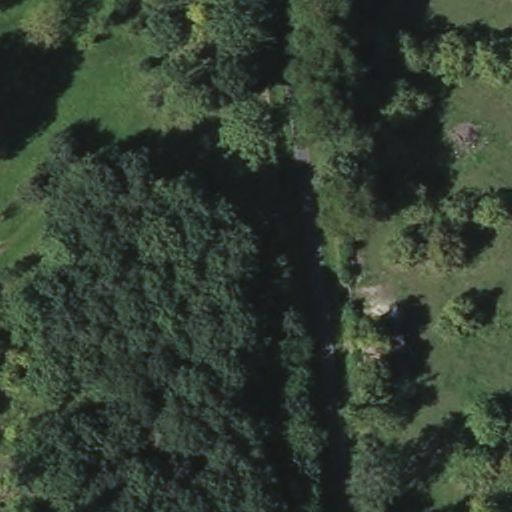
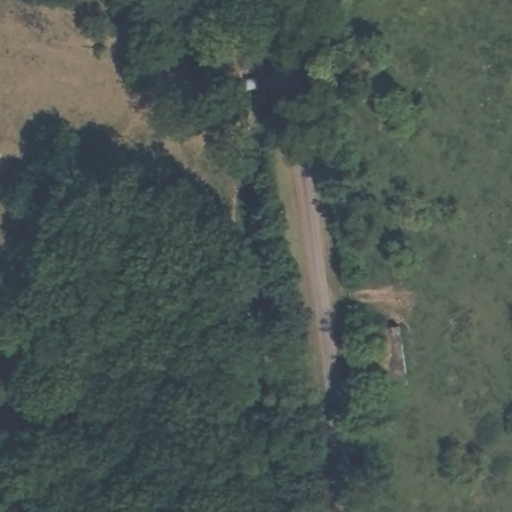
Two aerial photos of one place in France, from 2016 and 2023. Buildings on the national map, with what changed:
unchanged [(396,320),(414,372),(387,383),(369,330),(396,320)]

